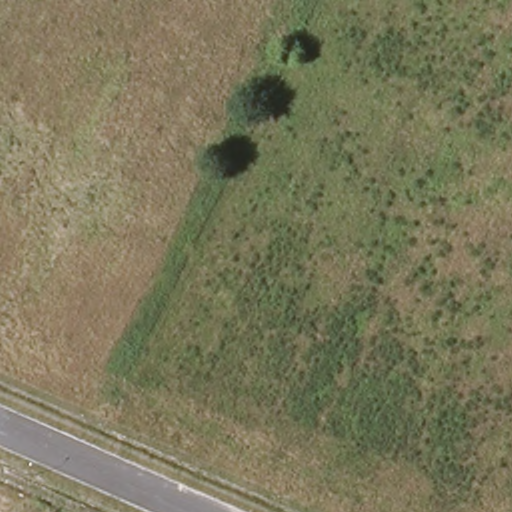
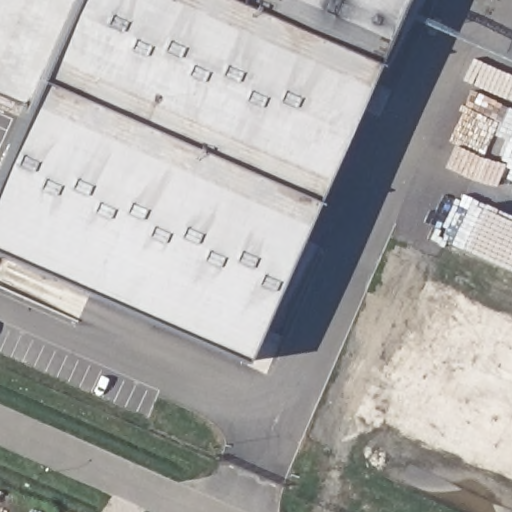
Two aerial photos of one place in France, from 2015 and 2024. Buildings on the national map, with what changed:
new [(0,98),(0,0),(71,0),(36,80),(23,109),(0,98)]
new [(36,80),(71,0),(225,0),(372,65),(312,202),(36,80)]
new [(372,65),(225,0),(400,0),(372,65)]
new [(241,363),(0,258),(0,160),(23,109),(36,80),(312,202),(241,363)]

